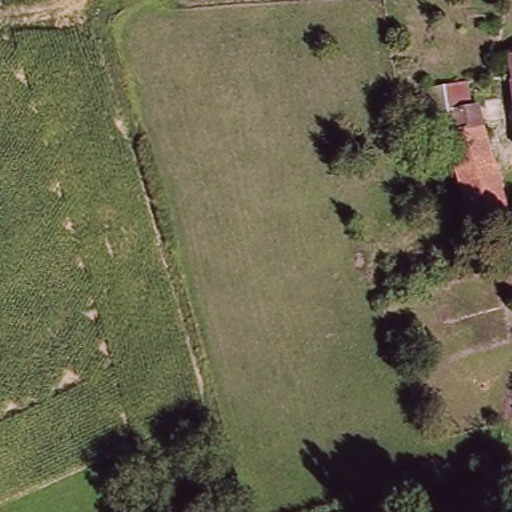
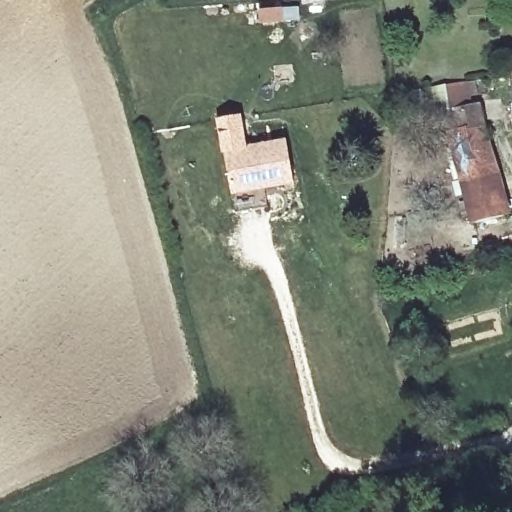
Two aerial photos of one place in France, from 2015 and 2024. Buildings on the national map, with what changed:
unchanged [(506,174),(474,181),(463,121),(440,124),(433,89),(460,86),(465,111),(486,108),(506,174)]
new [(295,182),(265,188),(269,207),(235,213),(232,194),(224,150),(287,139),(295,182)]
unchanged [(512,198),(512,214),(479,221),(474,181),(506,174),(512,198)]

